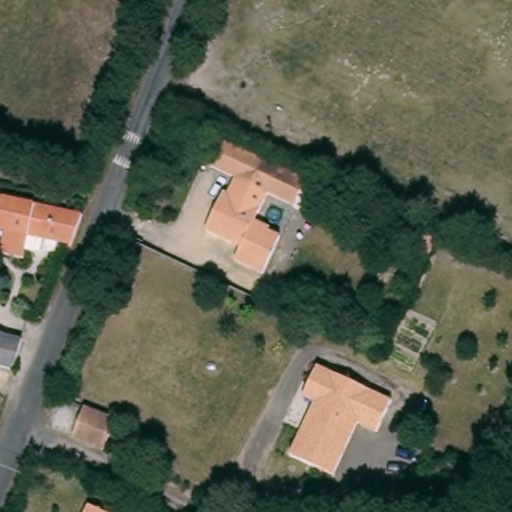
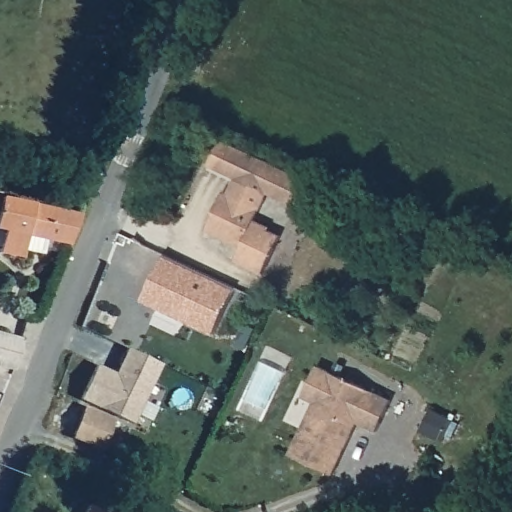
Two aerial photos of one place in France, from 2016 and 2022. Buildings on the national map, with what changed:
unchanged [(264,271),(235,258),(240,244),(206,229),(225,188),(229,190),(235,177),(209,165),(222,137),(308,178),(296,204),(270,192),(256,218),(272,225),(270,229),(281,234),(264,271)]
unchanged [(82,216),(78,228),(72,245),(66,244),(29,237),(27,246),(24,260),(16,258),(2,255),(6,233),(0,232),(0,206),(2,200),(76,213),(80,214),(82,214),(82,216)]
unchanged [(431,253),(402,240),(408,226),(437,240),(431,253)]
new [(234,288),(214,332),(143,300),(164,256),(234,288)]
unchanged [(15,369),(0,366),(0,333),(23,339),(15,369)]
new [(96,365),(116,373),(128,348),(162,364),(133,422),(81,399),(96,365)]
unchanged [(334,474),(291,454),(315,402),(303,396),(309,384),(318,365),(392,400),(378,431),(358,422),(352,435),(334,474)]
unchanged [(104,448),(73,436),(84,406),(116,419),(104,448)]
unchanged [(104,512),(86,512),(90,505),(104,512)]

